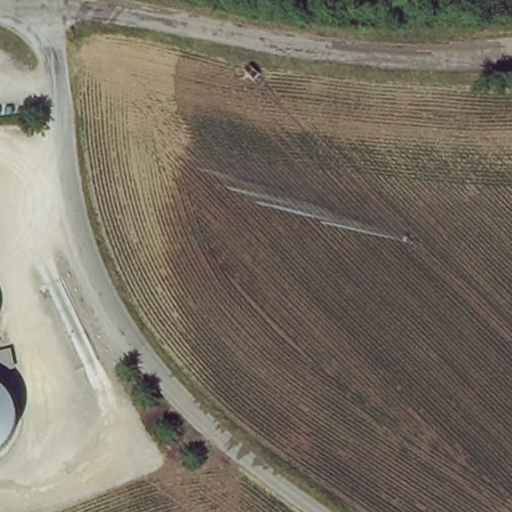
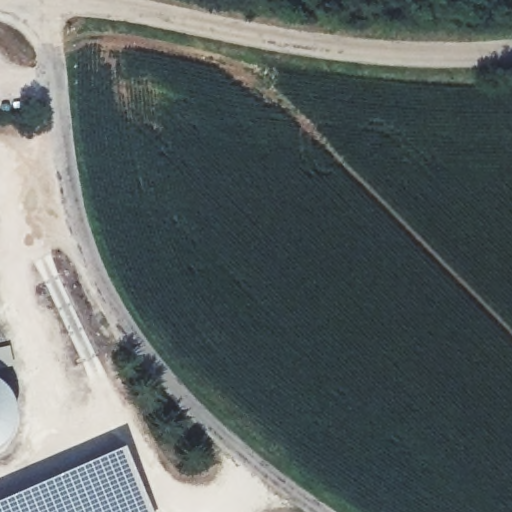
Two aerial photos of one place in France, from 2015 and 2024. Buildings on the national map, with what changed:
unchanged [(20,410),(22,427),(19,437),(11,450),(2,459),(0,460),(0,386),(9,393),(20,410)]
new [(124,447),(153,512),(22,512),(19,502),(14,503),(0,506),(0,504),(33,488),(124,447)]

